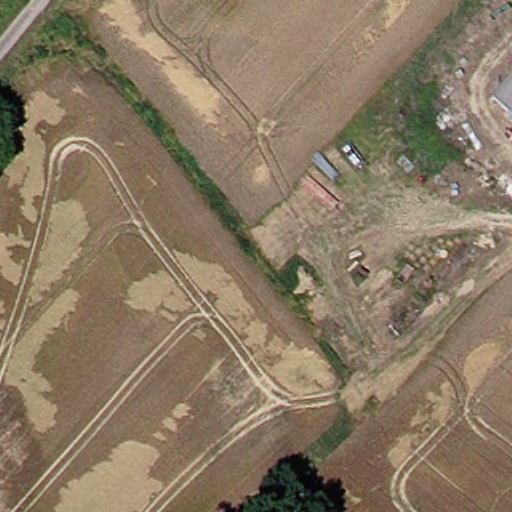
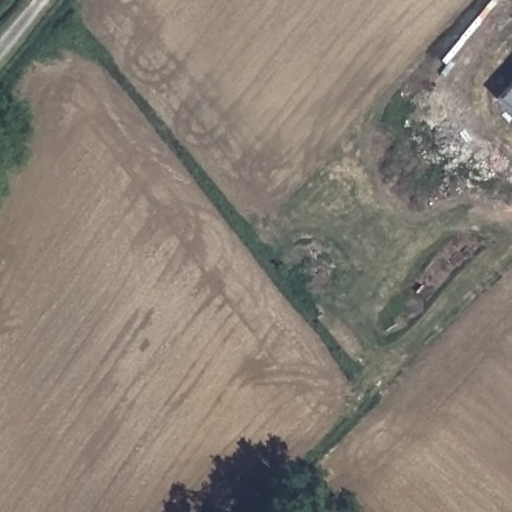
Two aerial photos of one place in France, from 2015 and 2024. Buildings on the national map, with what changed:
unchanged [(512,81),(512,127),(490,106),(512,81)]

